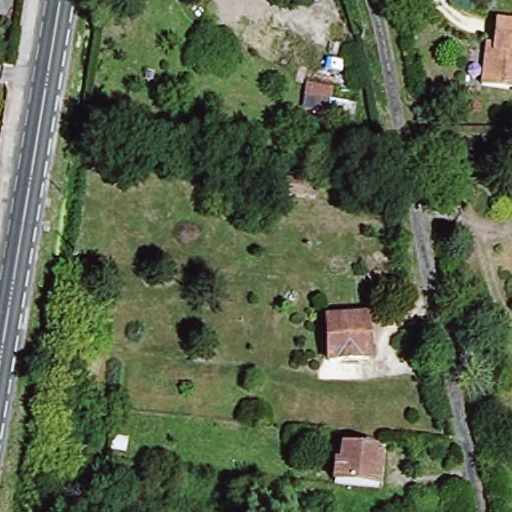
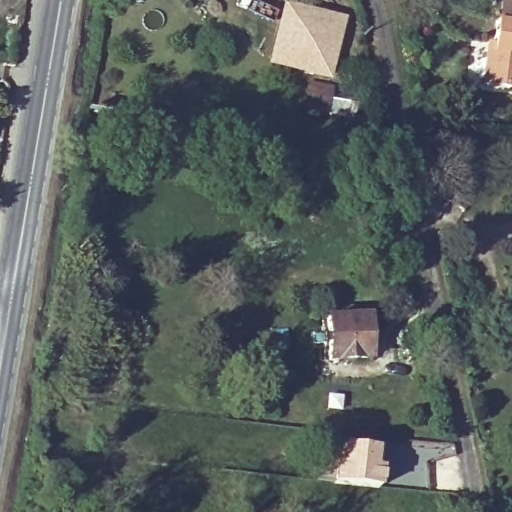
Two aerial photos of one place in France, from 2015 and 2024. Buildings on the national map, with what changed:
new [(282,2),(346,17),(330,80),(265,65),(282,2)]
unchanged [(483,52),(491,52),(494,22),(500,23),(512,25),(512,91),(495,89),(479,87),(483,52)]
new [(305,80),(333,86),(330,98),(355,102),(352,119),(327,114),(328,106),(300,99),(305,80)]
unchanged [(320,182),(317,199),(287,194),(290,178),(320,182)]
unchanged [(323,315),(367,314),(370,359),(325,362),(323,315)]
unchanged [(330,482),(333,461),(339,461),(341,442),(378,446),(374,487),(330,482)]

